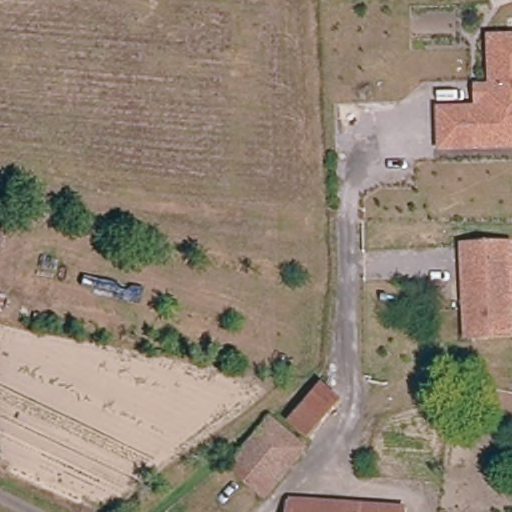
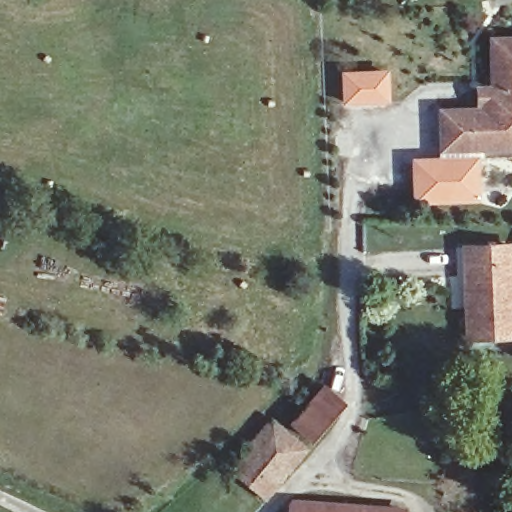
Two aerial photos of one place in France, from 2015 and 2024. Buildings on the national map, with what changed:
unchanged [(512,144),(442,147),(440,109),(479,107),(478,85),(492,84),(490,36),(512,35),(512,144)]
new [(385,68),(386,103),(340,105),(339,70),(385,68)]
new [(478,201),(410,202),(408,157),(475,155),(478,201)]
unchanged [(503,250),(512,250),(512,299),(506,299),(503,299),(505,332),(462,335),(457,245),(503,242),(503,250)]
unchanged [(343,403),(310,443),(288,424),(320,387),(343,403)]
unchanged [(229,473),(266,424),(305,451),(268,501),(229,473)]
unchanged [(393,512),(293,512),(294,503),(393,512)]

